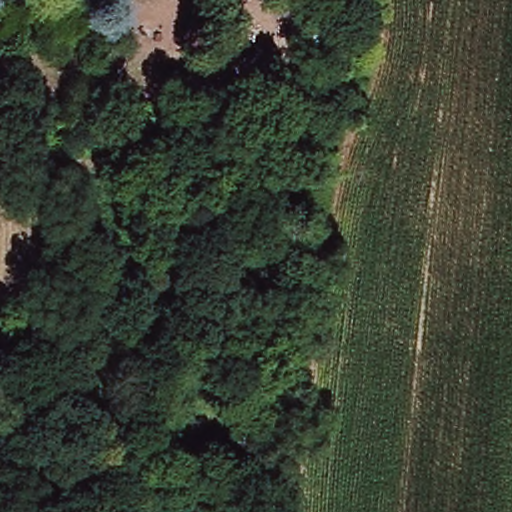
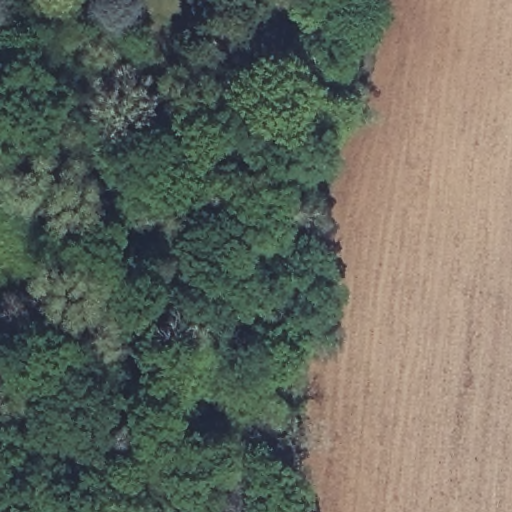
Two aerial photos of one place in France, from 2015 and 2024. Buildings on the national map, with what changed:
unchanged [(263,72),(235,72),(238,37),(265,40),(263,72)]

